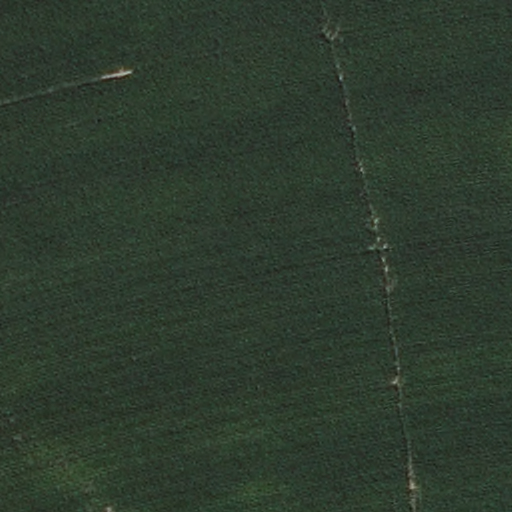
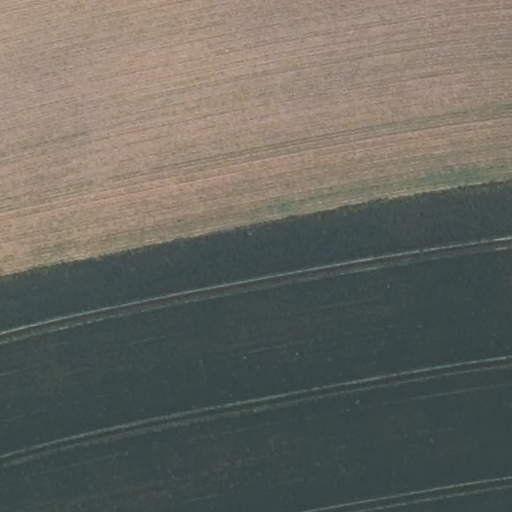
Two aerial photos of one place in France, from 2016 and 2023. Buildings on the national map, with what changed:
[]

